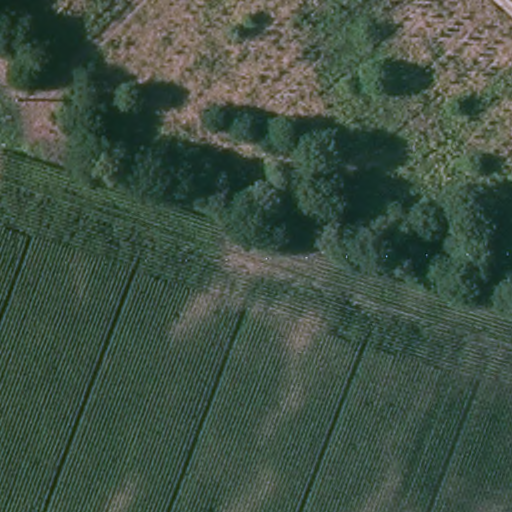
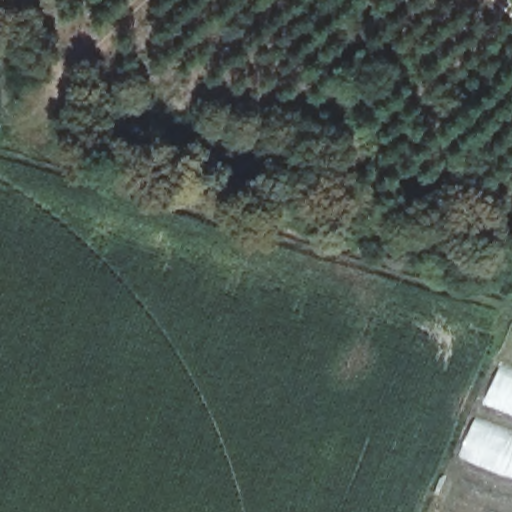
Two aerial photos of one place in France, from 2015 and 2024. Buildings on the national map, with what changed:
demolished [(4,118),(0,129),(0,117),(4,118)]
new [(512,369),(512,417),(480,404),(499,364),(512,369)]
new [(512,432),(512,480),(456,457),(474,416),(512,432)]

